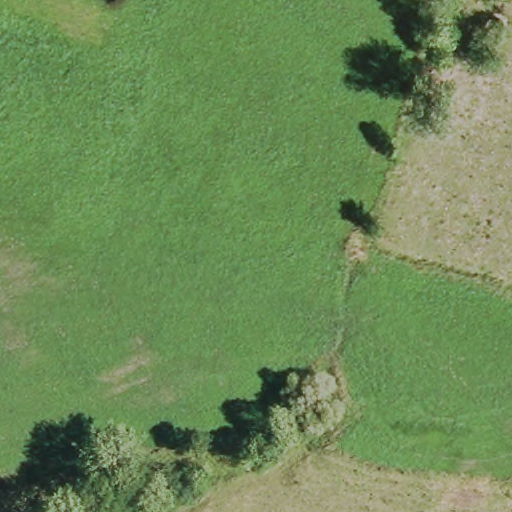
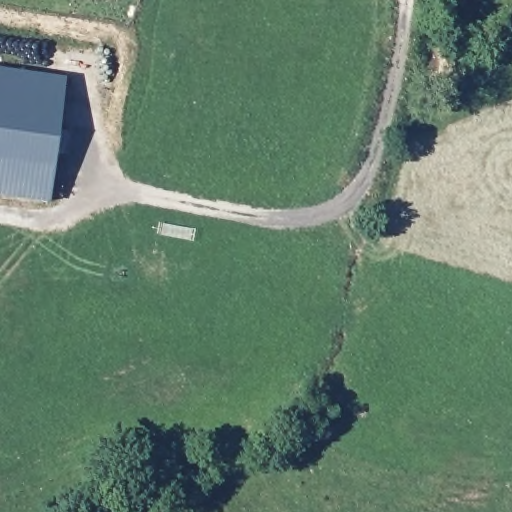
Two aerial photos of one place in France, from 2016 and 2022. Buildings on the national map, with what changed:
new [(49,202),(0,196),(0,68),(66,77),(49,202)]

